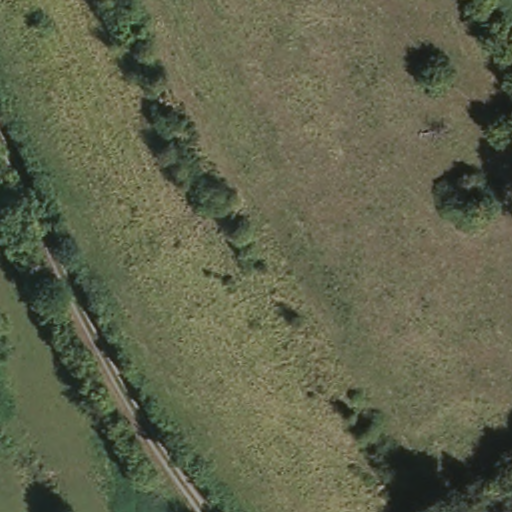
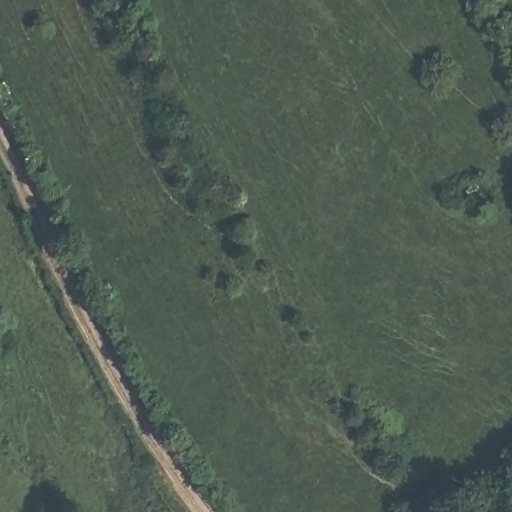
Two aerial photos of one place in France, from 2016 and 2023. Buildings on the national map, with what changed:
unchanged [(457,197),(478,186),(492,212),(470,224),(457,197)]

